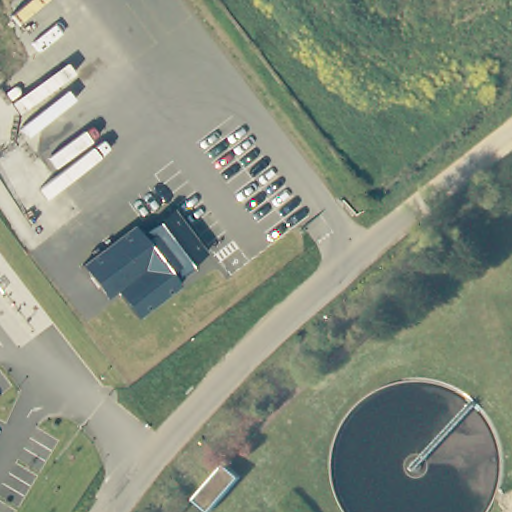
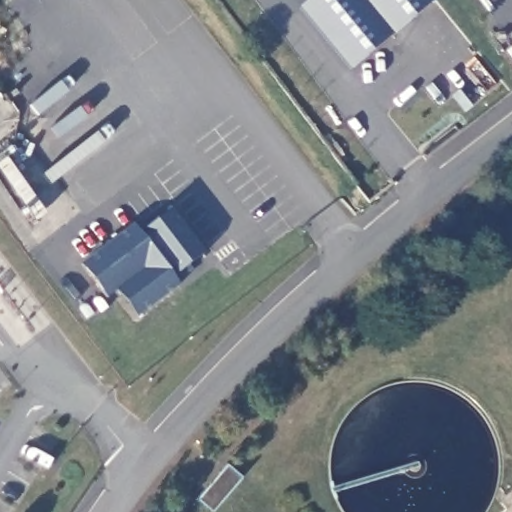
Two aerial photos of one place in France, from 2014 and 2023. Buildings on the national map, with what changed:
new [(347,71),(296,10),(308,0),(433,0),(347,71)]
unchanged [(138,323),(118,297),(108,305),(82,272),(135,231),(141,239),(172,215),(206,257),(175,282),(181,290),(138,323)]
unchanged [(224,459),(244,475),(213,512),(208,512),(192,500),(224,459)]

